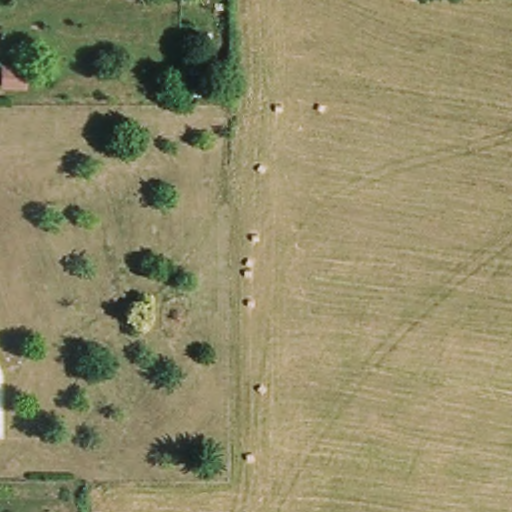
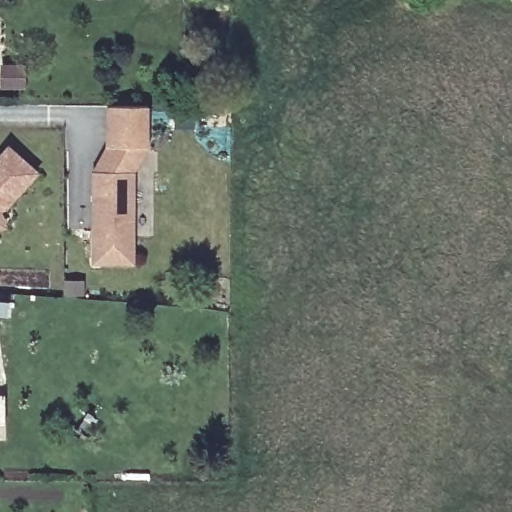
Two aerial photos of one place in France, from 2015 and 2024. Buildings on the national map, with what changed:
new [(96,262),(95,171),(109,146),(109,106),(147,106),(147,146),(133,171),(133,262),(96,262)]
new [(0,157),(9,147),(38,172),(6,208),(0,210),(6,226),(0,228),(0,157)]

